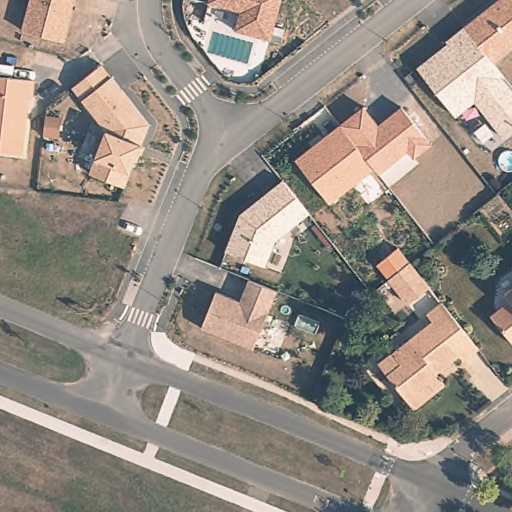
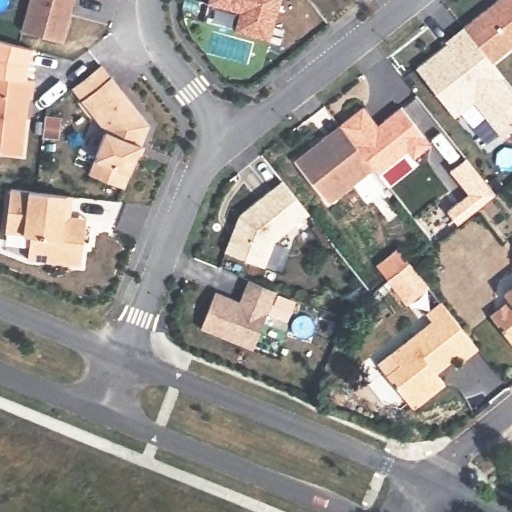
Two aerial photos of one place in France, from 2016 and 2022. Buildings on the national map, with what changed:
unchanged [(64,42),(20,29),(28,0),(76,0),(64,42)]
unchanged [(275,28),(284,30),(280,45),(234,30),(239,14),(208,3),(209,0),(282,0),(275,28)]
unchanged [(443,42),(496,0),(512,0),(512,48),(493,64),(512,88),(512,129),(502,137),(474,104),(457,117),(416,67),(445,46),(443,42)]
unchanged [(151,126),(125,190),(88,174),(105,132),(69,90),(101,64),(151,126)]
unchanged [(35,82),(34,96),(30,98),(24,156),(0,153),(0,77),(35,82)]
unchanged [(339,127),(361,106),(378,126),(400,106),(430,145),(414,158),(418,164),(388,188),(374,170),(339,127)]
unchanged [(374,170),(328,207),(294,162),(339,127),(374,170)]
unchanged [(495,195),(457,226),(446,210),(469,194),(447,171),(466,157),(495,195)]
unchanged [(309,215),(276,242),(265,268),(226,251),(239,217),(282,183),(309,215)]
new [(36,192),(72,197),(70,217),(86,219),(85,226),(80,266),(28,260),(31,236),(5,233),(11,189),(36,192)]
new [(409,263),(428,287),(407,304),(388,280),(409,263)]
unchanged [(277,294),(253,352),(200,330),(216,294),(239,302),(247,282),(277,294)]
unchanged [(512,289),(512,298),(508,293),(512,289)]
unchanged [(468,361),(463,355),(440,374),(449,385),(418,410),(391,375),(404,364),(396,354),(431,326),(419,311),(440,295),(446,302),(483,349),(468,361)]
unchanged [(512,301),(512,337),(494,315),(512,301)]

